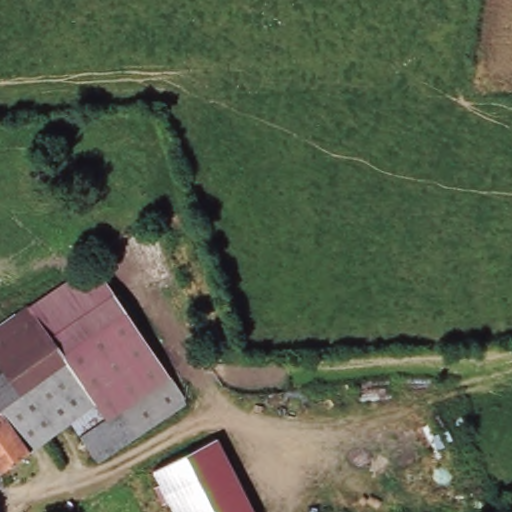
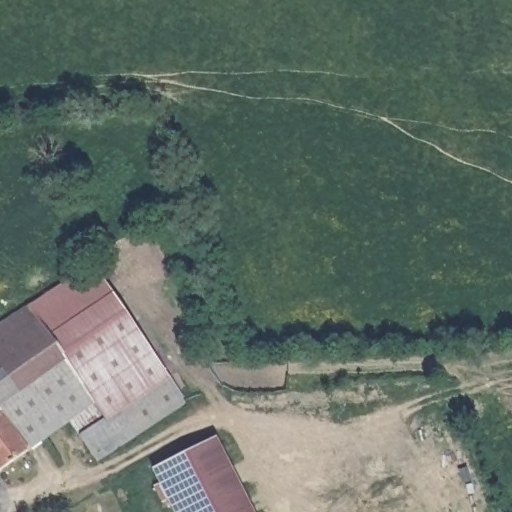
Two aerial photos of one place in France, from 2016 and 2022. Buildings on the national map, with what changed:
unchanged [(0,415),(0,408),(64,361),(25,307),(90,265),(187,403),(96,461),(67,422),(27,452),(0,415)]
unchanged [(25,307),(64,361),(0,408),(0,325),(25,307)]
unchanged [(27,452),(0,472),(0,415),(27,452)]
unchanged [(187,450),(212,437),(251,512),(172,512),(150,470),(187,450)]

